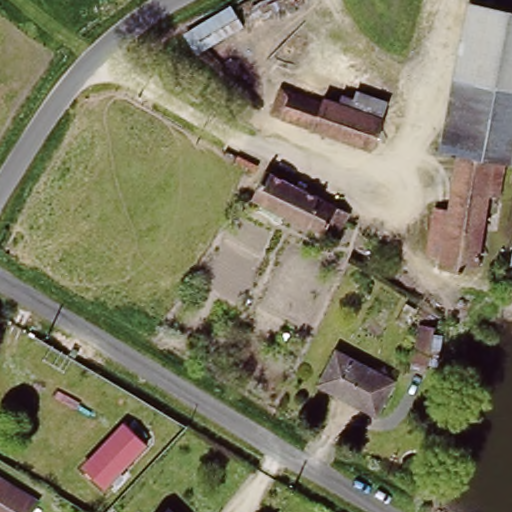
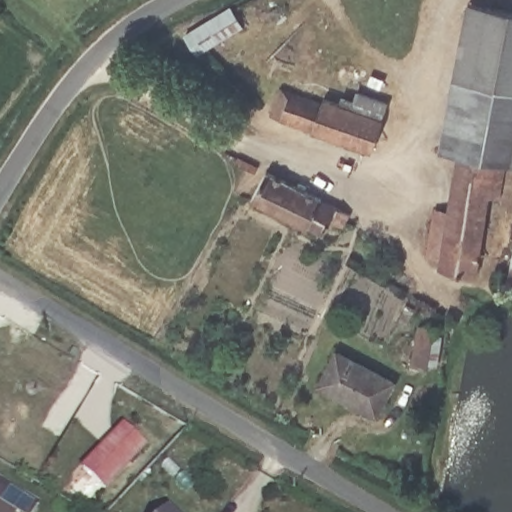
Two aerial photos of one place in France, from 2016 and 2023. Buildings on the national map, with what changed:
unchanged [(512,169),(456,160),(438,156),(462,7),(512,16),(512,169)]
unchanged [(229,9),(242,31),(197,55),(182,36),(229,9)]
unchanged [(350,106),(354,92),(390,104),(375,151),(272,121),(280,94),(321,105),(323,99),(350,106)]
unchanged [(512,178),(507,207),(492,205),(479,281),(438,274),(442,257),(424,254),(432,207),(448,210),(456,160),(512,169),(512,178)]
unchanged [(347,211),(343,221),(335,244),(251,206),(265,175),(347,211)]
unchanged [(512,251),(512,286),(505,285),(512,251)]
unchanged [(392,387),(384,403),(376,418),(325,391),(333,375),(341,360),(392,387)]
unchanged [(115,436),(136,453),(106,487),(85,469),(115,436)]
unchanged [(37,500),(30,512),(16,512),(13,510),(12,512),(0,512),(0,478),(37,500)]

